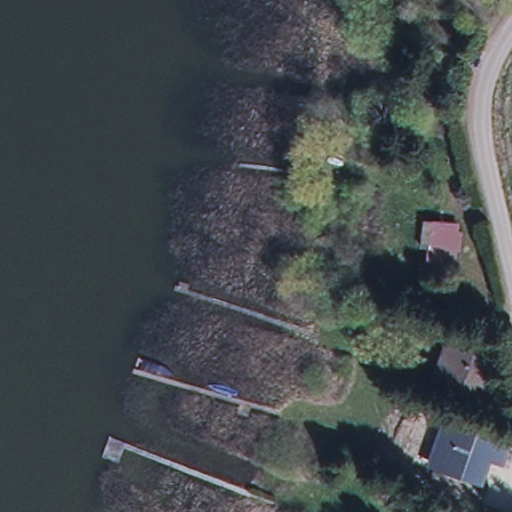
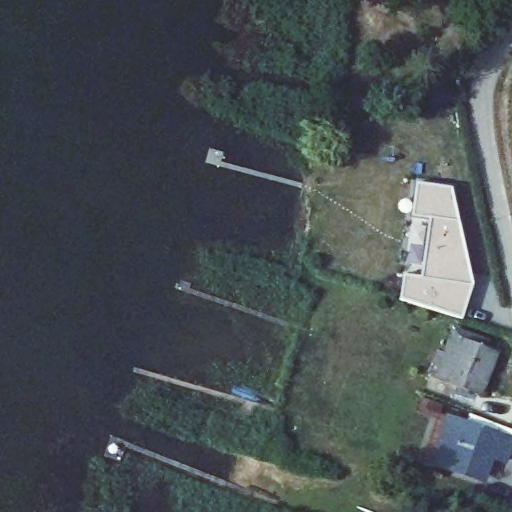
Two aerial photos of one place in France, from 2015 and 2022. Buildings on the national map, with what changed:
new [(473,285),(462,318),(399,300),(402,276),(419,278),(428,219),(412,217),(417,185),(450,189),(473,285)]
demolished [(436,243),(427,242),(431,217),(463,221),(462,227),(468,228),(465,247),(459,246),(457,262),(450,261),(448,275),(423,271),(425,257),(433,258),(436,243)]
unchanged [(485,356),(495,360),(481,399),(447,387),(437,383),(454,337),(464,341),(488,349),(485,356)]
unchanged [(429,468),(443,427),(459,433),(463,422),(506,437),(502,447),(506,449),(499,468),(484,463),(477,485),(429,468)]

